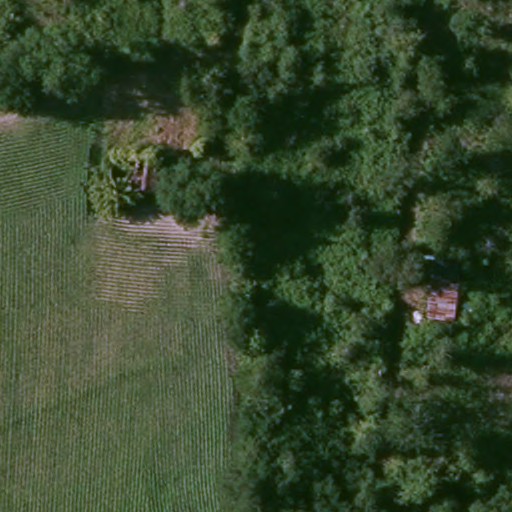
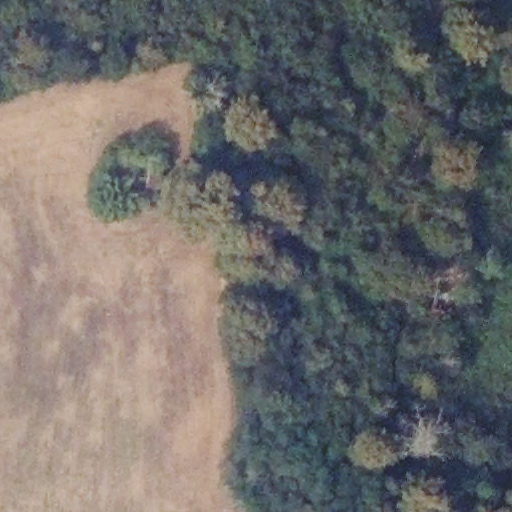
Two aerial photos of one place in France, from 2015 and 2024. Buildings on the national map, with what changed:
unchanged [(436,273),(465,276),(459,331),(430,328),(436,273)]

